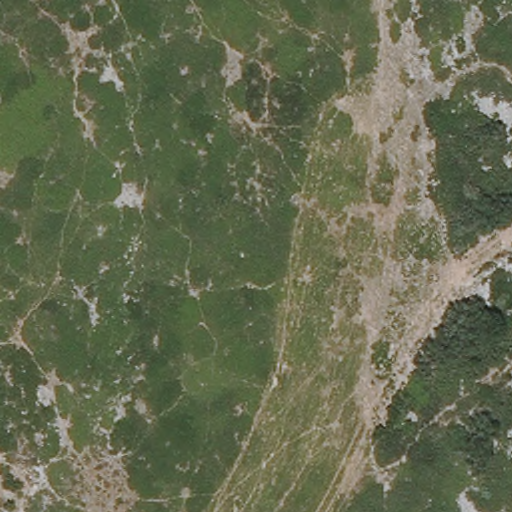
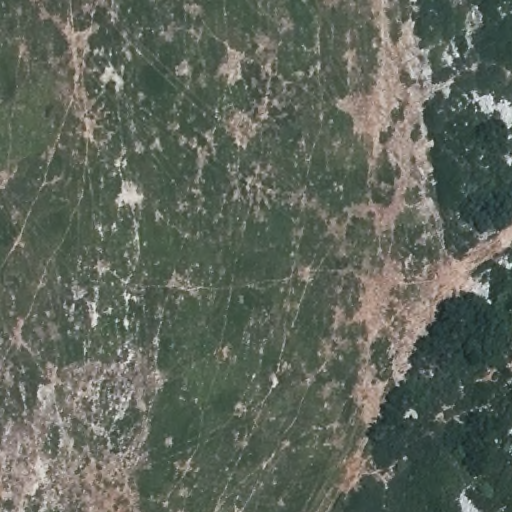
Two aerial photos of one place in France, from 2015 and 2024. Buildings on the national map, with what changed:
[]

